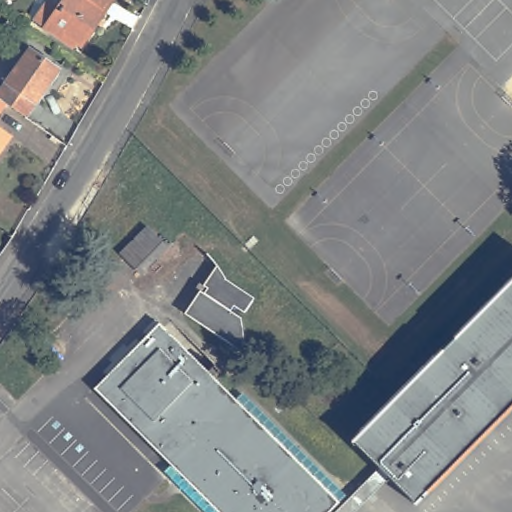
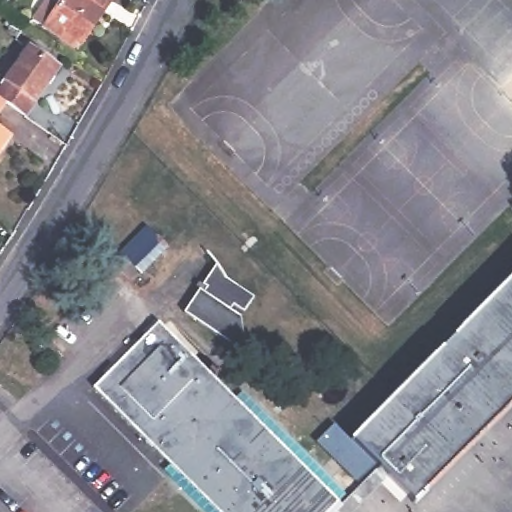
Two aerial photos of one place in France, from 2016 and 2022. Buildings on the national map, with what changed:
unchanged [(61,0),(120,0),(122,1),(89,49),(73,39),(70,43),(54,32),(44,25),(61,0)]
unchanged [(67,73),(34,120),(15,106),(5,100),(37,52),(67,73)]
unchanged [(15,106),(1,126),(20,140),(0,168),(0,96),(5,100),(15,106)]
unchanged [(148,276),(125,256),(153,227),(174,249),(148,276)]
unchanged [(195,291),(198,293),(201,289),(199,286),(214,266),(224,274),(227,278),(230,282),(254,298),(243,314),(235,306),(231,312),(240,320),(240,331),(239,345),(235,355),(179,313),(195,291)]
unchanged [(512,414),(420,506),(395,481),(385,470),(359,444),(512,291),(512,414)]
unchanged [(165,326),(343,505),(336,512),(221,512),(100,390),(165,326)]
unchanged [(380,495),(363,512),(341,512),(385,470),(395,481),(380,495)]

